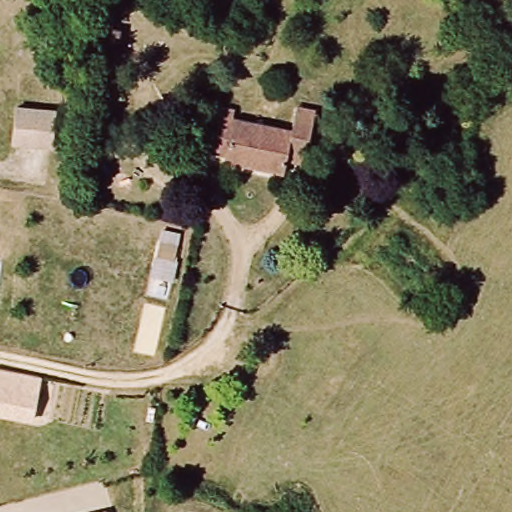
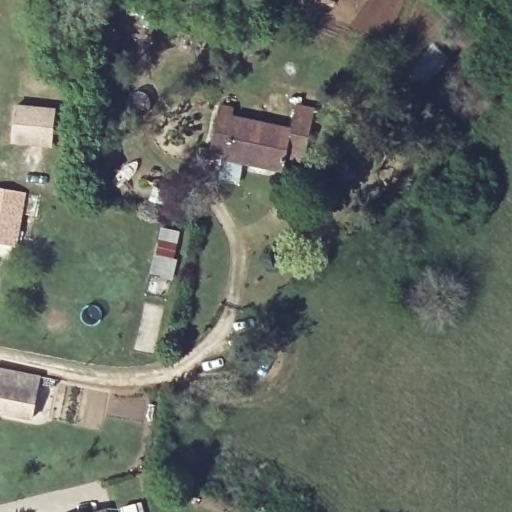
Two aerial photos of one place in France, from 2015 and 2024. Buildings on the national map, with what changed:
unchanged [(55,105),(51,146),(11,141),(16,101),(55,105)]
unchanged [(292,122),(291,109),(314,110),(315,144),(290,144),(290,163),(249,162),(248,155),(235,155),(226,155),(227,123),(245,123),(292,122)]
new [(13,248),(0,247),(0,188),(21,191),(13,248)]
unchanged [(0,411),(0,366),(41,375),(31,418),(0,411)]

